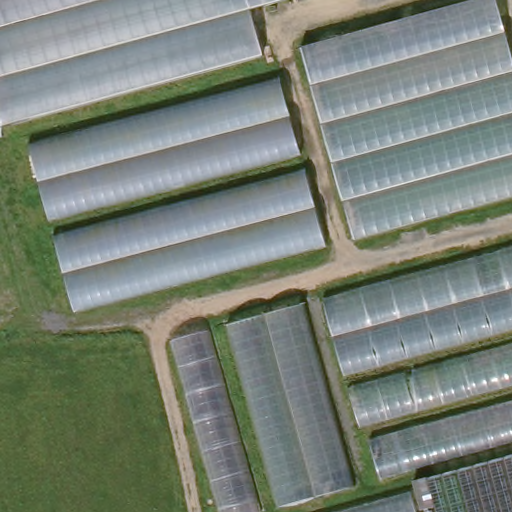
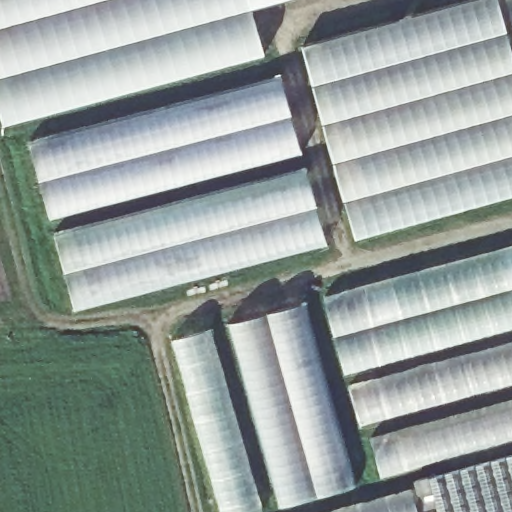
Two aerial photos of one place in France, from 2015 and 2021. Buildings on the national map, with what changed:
unchanged [(251,15),(260,52),(6,120),(0,99),(0,0),(303,0),(251,15)]
unchanged [(465,0),(500,0),(512,39),(512,198),(358,239),(305,44),(465,0)]
unchanged [(300,154),(50,221),(29,146),(280,82),(300,154)]
unchanged [(59,235),(307,169),(330,246),(77,308),(59,235)]
unchanged [(512,246),(512,512),(230,512),(179,332),(512,246)]

